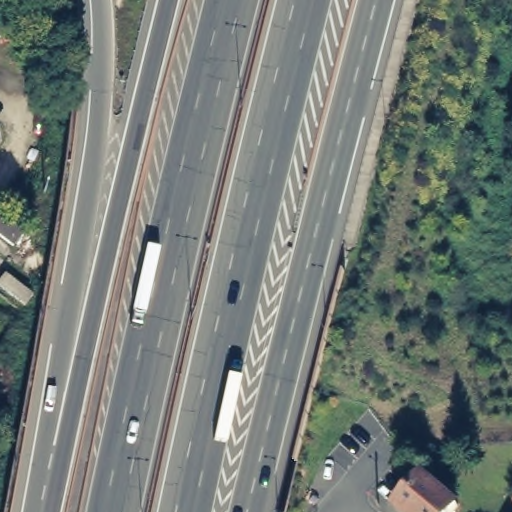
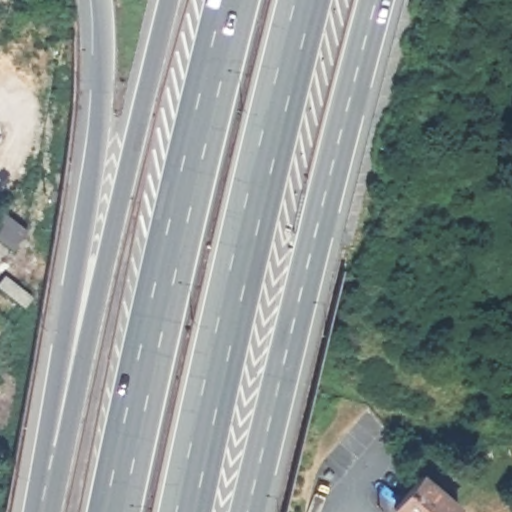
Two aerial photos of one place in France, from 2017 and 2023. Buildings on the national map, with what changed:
unchanged [(24,229),(12,246),(0,237),(0,211),(0,210),(24,229)]
unchanged [(459,512),(405,512),(399,506),(426,475),(463,506),(459,512)]

